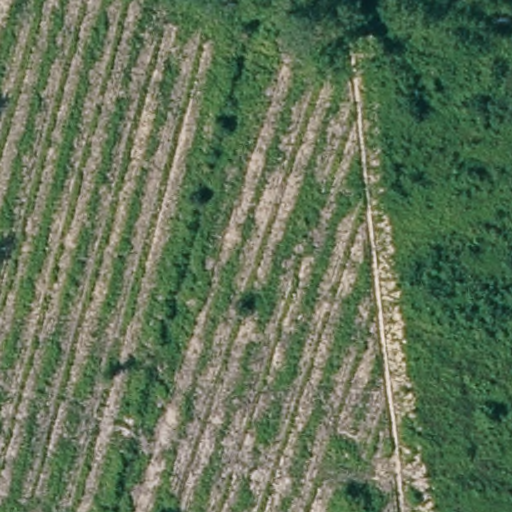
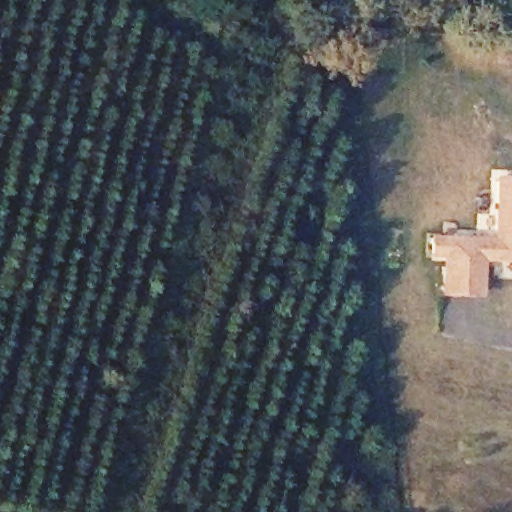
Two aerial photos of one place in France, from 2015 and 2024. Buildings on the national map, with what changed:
new [(485,295),(442,293),(443,257),(430,256),(431,233),(494,237),(496,175),(512,176),(512,260),(486,260),(485,295)]

